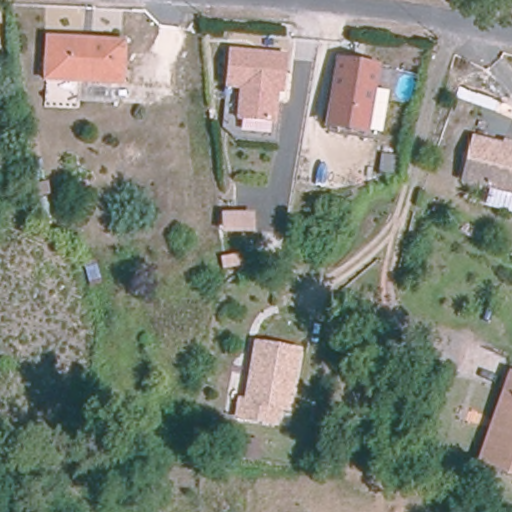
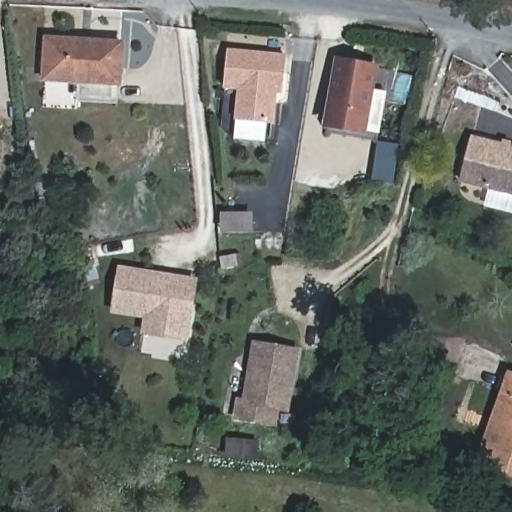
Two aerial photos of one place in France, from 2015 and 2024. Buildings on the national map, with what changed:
unchanged [(46,54),(46,40),(122,44),(120,84),(65,81),(45,80),(46,54)]
unchanged [(273,123),(237,120),(239,88),(225,87),(228,50),(285,56),(282,92),(276,92),(275,102),(273,123)]
unchanged [(375,65),(366,130),(329,125),(338,60),(375,65)]
unchanged [(473,139),(512,148),(512,192),(463,181),(473,139)]
unchanged [(395,157),(392,177),(377,175),(380,155),(395,157)]
new [(116,265),(199,277),(190,342),(142,335),(144,318),(111,314),(116,265)]
unchanged [(286,412),(278,410),(274,427),(232,417),(237,398),(244,400),(258,342),(300,352),(286,412)]
unchanged [(512,375),(512,394),(503,391),(509,374),(512,375)]
unchanged [(503,391),(512,394),(512,411),(491,467),(477,461),(503,391)]
unchanged [(512,411),(512,474),(491,467),(512,411)]

